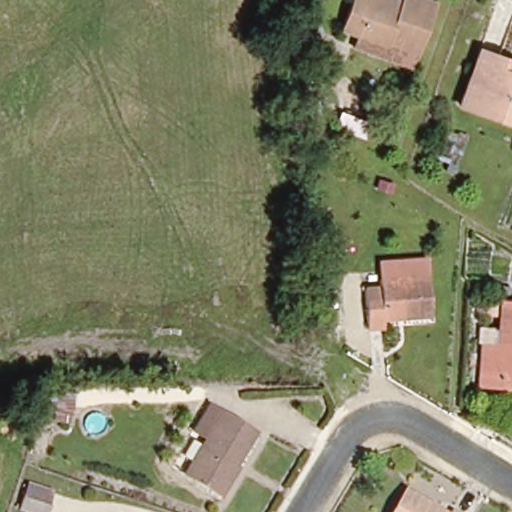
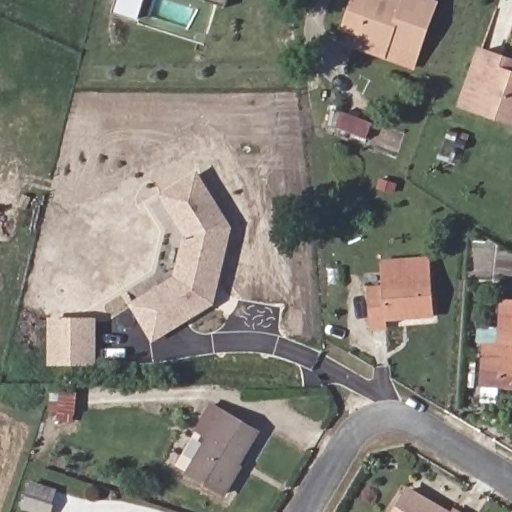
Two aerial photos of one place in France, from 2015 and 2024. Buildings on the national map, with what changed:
new [(225,7),(207,1),(207,0),(227,0),(225,7)]
unchanged [(359,48),(363,37),(343,29),(353,0),(382,0),(399,7),(402,0),(432,0),(437,2),(416,57),(412,69),(359,48)]
unchanged [(512,59),(512,116),(464,98),(483,48),(503,56),(512,59)]
new [(174,277),(183,236),(159,196),(198,173),(234,228),(214,306),(153,343),(128,304),(174,277)]
new [(383,284),(381,260),(430,256),(435,318),(387,321),(388,330),(372,331),(369,286),(383,284)]
demolished [(370,297),(386,295),(385,284),(434,282),(437,326),(394,329),(394,337),(373,339),(370,297)]
unchanged [(512,301),(512,379),(499,378),(498,389),(482,388),(486,347),(500,348),(504,301),(512,301)]
new [(96,318),(98,366),(47,365),(48,319),(96,318)]
unchanged [(80,393),(77,416),(48,413),(47,388),(80,393)]
unchanged [(238,454),(242,456),(222,490),(184,469),(224,407),(255,425),(238,454)]
unchanged [(48,512),(35,512),(16,506),(29,472),(58,483),(48,512)]
unchanged [(396,512),(409,492),(444,512),(396,512)]
unchanged [(462,512),(454,512),(456,508),(462,512)]

